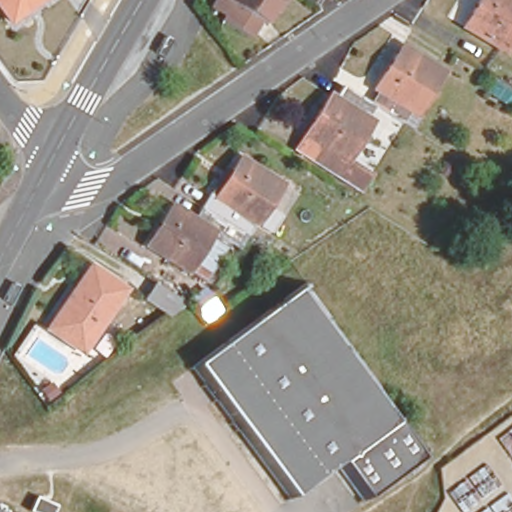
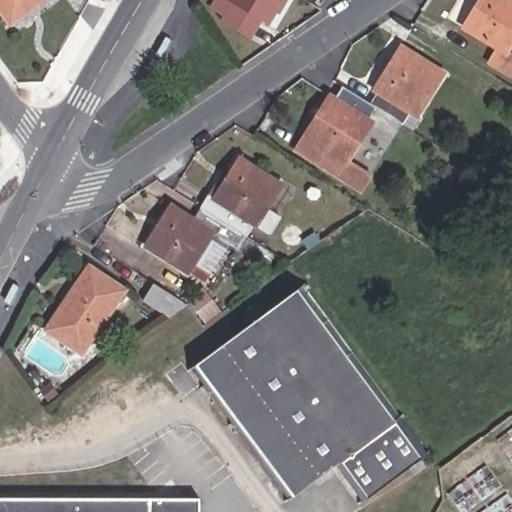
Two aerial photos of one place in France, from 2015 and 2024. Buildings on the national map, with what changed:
unchanged [(9,24),(0,12),(0,0),(40,0),(9,24)]
unchanged [(276,12),(271,8),(261,26),(254,21),(243,39),(215,21),(217,17),(205,10),(211,0),(220,0),(223,2),(224,0),(283,0),(276,12)]
unchanged [(307,4),(300,0),(309,0),(307,4)]
unchanged [(465,25),(480,0),(512,0),(512,42),(507,51),(465,25)]
unchanged [(379,113),(371,108),(379,96),(375,93),(402,49),(445,74),(417,120),(410,132),(403,127),(379,113)]
unchanged [(364,180),(355,187),(297,152),(305,140),(330,99),(335,102),(343,90),(370,107),(371,108),(379,113),(348,162),(370,176),(364,180)]
unchanged [(512,114),(494,105),(498,95),(512,102),(512,114)]
unchanged [(231,224),(201,206),(207,196),(213,200),(241,157),(282,182),(256,224),(249,221),(243,231),(231,224)]
unchanged [(202,275),(190,267),(188,269),(146,244),(172,205),(193,218),(201,206),(231,224),(243,231),(236,243),(214,229),(205,244),(217,251),(202,275)]
unchanged [(89,268),(125,292),(83,356),(45,334),(89,268)]
unchanged [(169,314),(144,299),(151,288),(181,306),(169,314)]
unchanged [(367,505),(340,468),(286,509),(189,378),(297,297),(394,428),(421,465),(367,505)]
new [(200,498),(199,512),(0,512),(0,497),(200,498)]
demolished [(9,512),(0,512),(0,508),(9,512)]

